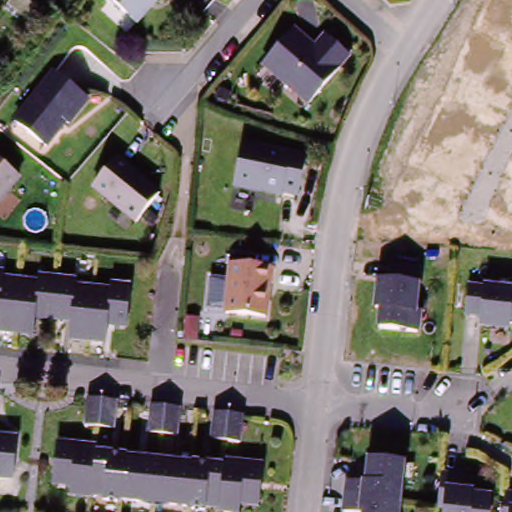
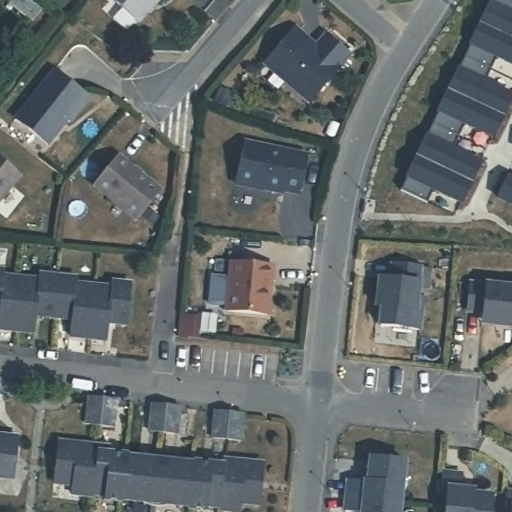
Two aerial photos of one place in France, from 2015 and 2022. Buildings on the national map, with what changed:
new [(13,0),(31,0),(42,9),(32,21),(10,4),(13,0)]
unchanged [(150,4),(137,19),(115,0),(150,0),(148,2),(150,4)]
new [(512,0),(512,42),(480,26),(492,0),(512,0)]
new [(512,42),(512,66),(496,59),(489,71),(463,59),(480,26),(512,42)]
unchanged [(312,105),(269,70),(296,36),(314,52),(325,40),(349,60),(312,105)]
new [(463,59),(489,71),(483,85),(510,99),(500,119),(447,92),(463,59)]
unchanged [(18,122),(53,74),(85,96),(66,122),(63,121),(47,144),(18,122)]
new [(447,92),(500,119),(491,138),(463,125),(457,138),(431,125),(447,92)]
new [(431,125),(457,138),(450,150),(478,164),(468,184),(415,157),(431,125)]
unchanged [(232,181),(244,145),(300,162),(289,195),(276,190),(274,195),(232,181)]
unchanged [(137,218),(92,181),(114,154),(159,191),(137,218)]
new [(415,157),(468,184),(458,204),(431,190),(424,204),(398,191),(415,157)]
unchanged [(13,175),(0,191),(0,165),(13,175)]
new [(512,181),(512,206),(496,199),(506,178),(512,181)]
unchanged [(260,320),(224,316),(231,265),(266,269),(260,320)]
unchanged [(418,316),(422,317),(418,335),(383,330),(387,311),(381,310),(385,283),(397,285),(399,268),(424,273),(418,316)]
unchanged [(13,335),(0,334),(0,272),(1,272),(1,278),(17,280),(13,335)]
unchanged [(34,281),(34,276),(53,277),(49,320),(38,318),(38,316),(31,315),(30,337),(13,335),(17,280),(34,281)]
unchanged [(60,321),(49,320),(53,277),(72,279),(71,285),(87,287),(82,341),(65,340),(66,319),(60,318),(60,321)]
unchanged [(103,290),(104,283),(122,285),(118,327),(107,325),(108,323),(101,322),(99,343),(82,341),(87,287),(103,290)]
unchanged [(482,320),(465,316),(467,291),(512,296),(512,328),(511,327),(510,331),(481,329),(482,320)]
unchanged [(125,403),(123,426),(109,425),(94,423),(96,401),(97,394),(111,395),(126,397),(125,403)]
unchanged [(171,434),(157,432),(160,403),(173,405),(186,406),(185,412),(184,435),(171,434)]
unchanged [(228,439),(213,437),(215,415),(216,409),(230,410),(244,412),(244,418),(242,440),(228,439)]
unchanged [(15,430),(13,448),(9,448),(9,453),(13,454),(11,471),(0,470),(0,429),(15,430)]
unchanged [(127,506),(127,508),(109,506),(110,502),(99,501),(99,503),(77,501),(78,491),(60,490),(62,473),(67,474),(67,468),(64,468),(66,450),(103,452),(114,454),(114,460),(131,461),(131,463),(127,506)]
unchanged [(356,482),(373,485),(376,460),(407,465),(403,505),(354,498),(356,482)]
unchanged [(181,467),(194,468),(190,512),(173,511),(174,506),(160,506),(146,505),(146,508),(127,506),(131,463),(146,464),(163,465),(172,466),(181,467)]
unchanged [(209,512),(190,512),(194,468),(214,471),(224,472),(225,465),(262,470),(261,486),(259,485),(257,492),(262,492),(261,508),(244,505),(243,512),(221,512),(221,511),(209,510),(209,512)]
unchanged [(435,480),(452,483),(451,501),(465,502),(484,505),(484,512),(433,512),(435,480)]
unchanged [(403,505),(402,512),(353,512),(354,498),(403,505)]
unchanged [(504,500),(512,500),(512,512),(503,512),(504,500)]

